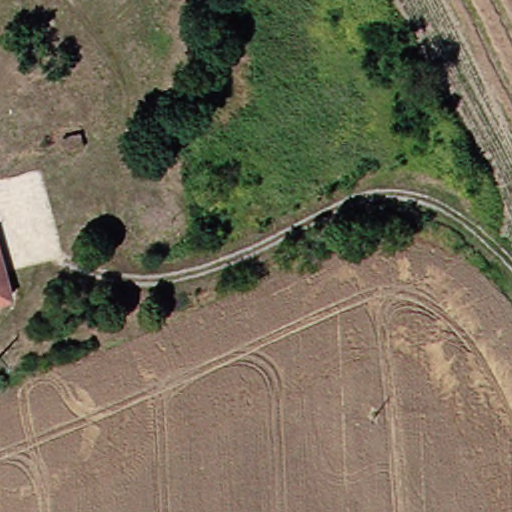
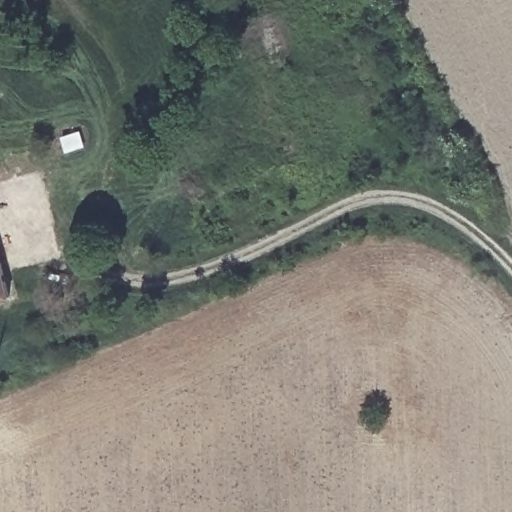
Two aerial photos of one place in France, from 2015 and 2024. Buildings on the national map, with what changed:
unchanged [(0,204),(0,175),(9,202),(0,204)]
unchanged [(0,303),(0,235),(15,299),(0,303)]

